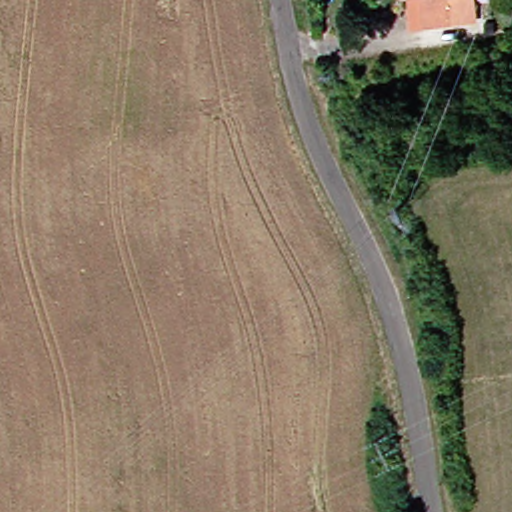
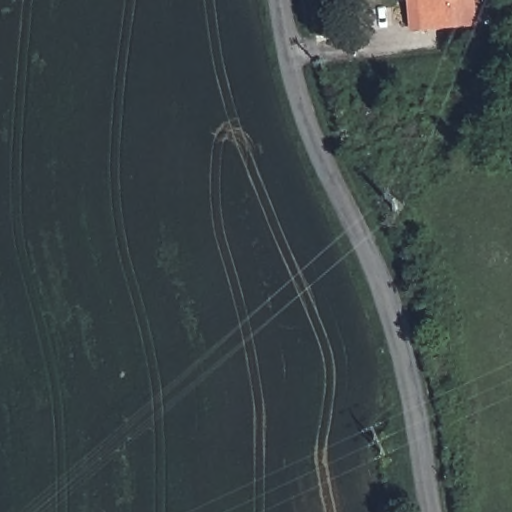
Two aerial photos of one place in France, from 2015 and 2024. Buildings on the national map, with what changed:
unchanged [(412,28),(410,0),(461,0),(463,23),(412,28)]

